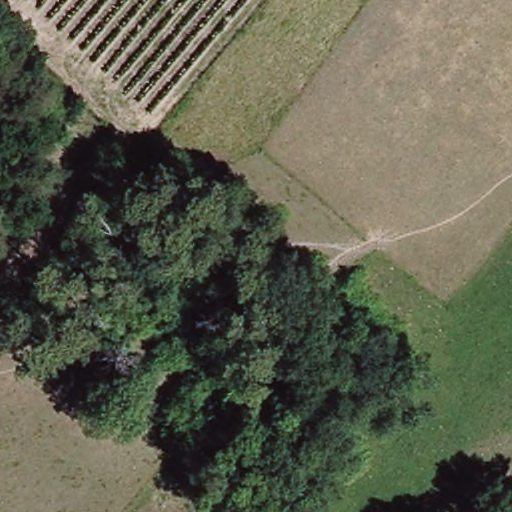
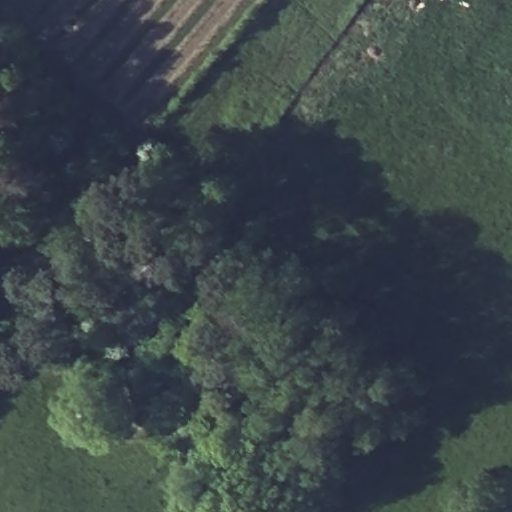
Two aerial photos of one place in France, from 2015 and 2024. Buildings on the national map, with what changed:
[]

